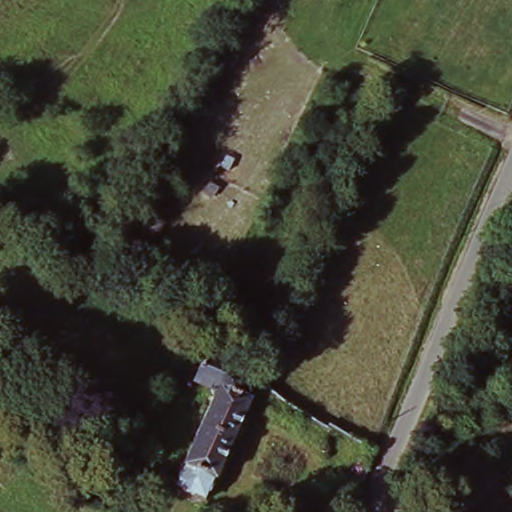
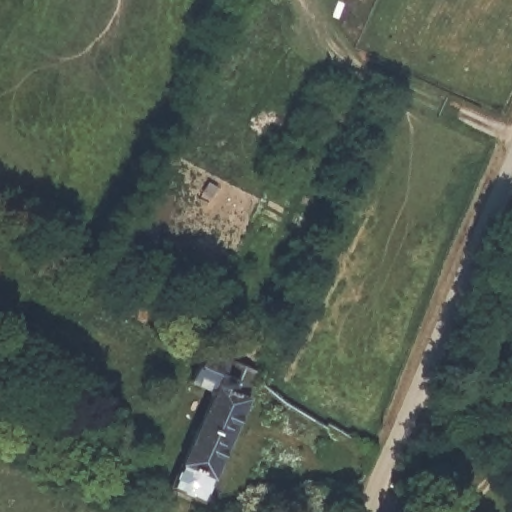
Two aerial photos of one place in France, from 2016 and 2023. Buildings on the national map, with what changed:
unchanged [(205,507),(172,492),(214,397),(192,387),(205,358),(259,382),(255,393),(205,507)]

